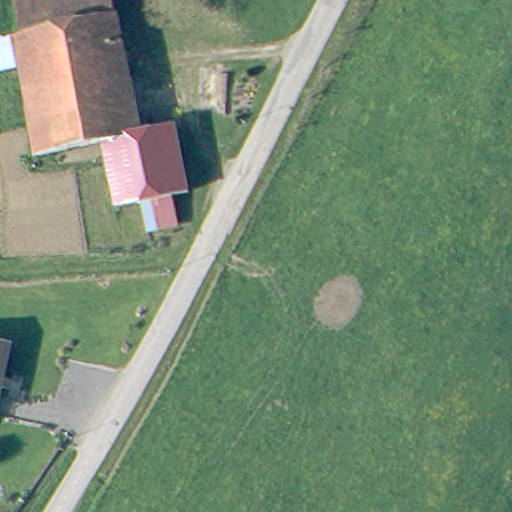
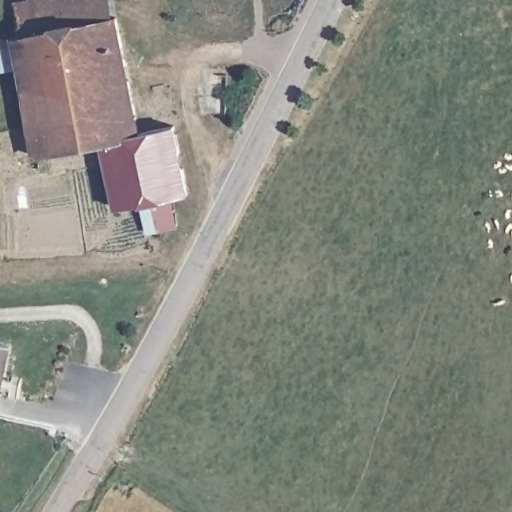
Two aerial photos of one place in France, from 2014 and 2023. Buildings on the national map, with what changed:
unchanged [(36,4),(53,0),(117,0),(120,10),(41,27),(36,4)]
unchanged [(0,56),(0,36),(17,32),(41,27),(120,10),(137,95),(80,107),(34,117),(22,60),(2,65),(0,56)]
unchanged [(149,199),(121,204),(106,138),(41,151),(34,117),(80,107),(137,95),(145,131),(180,124),(193,189),(180,191),(179,192),(185,222),(155,229),(149,199)]
unchanged [(0,408),(0,341),(17,345),(0,408)]

